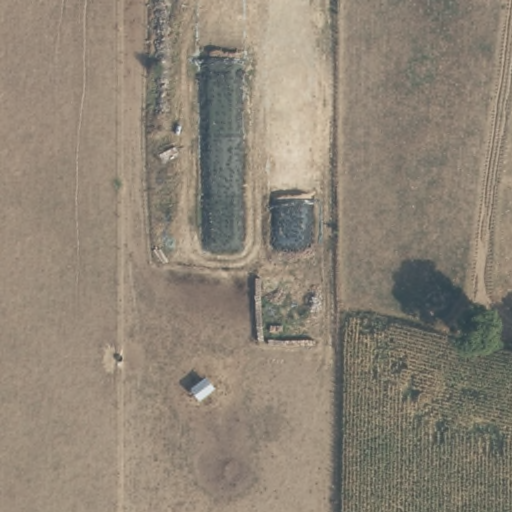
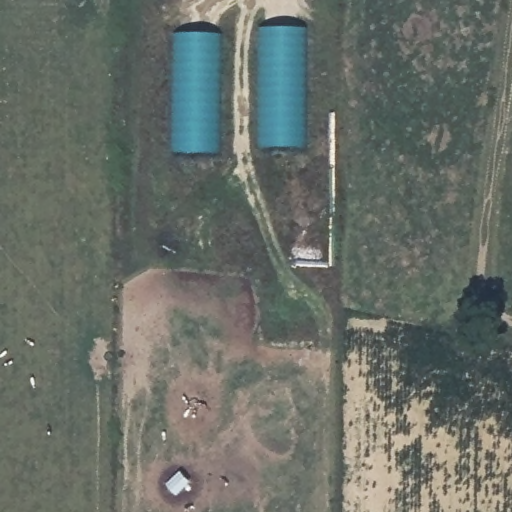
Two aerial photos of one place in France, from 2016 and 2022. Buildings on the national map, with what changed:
new [(306,148),(256,148),(257,27),(306,27),(306,148)]
new [(219,152),(170,152),(171,32),(222,33),(219,152)]

